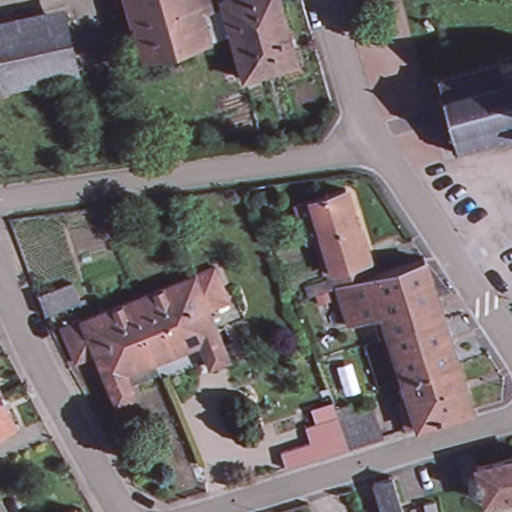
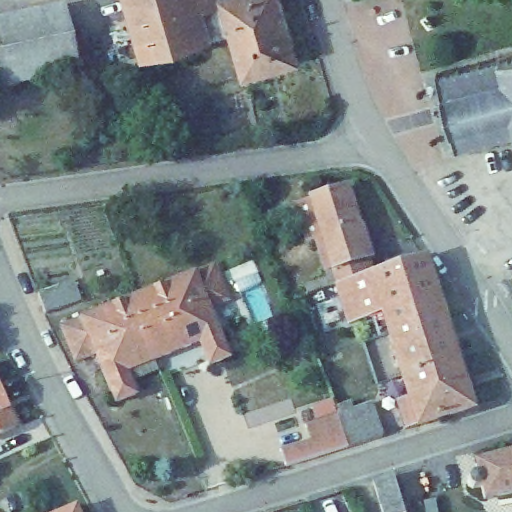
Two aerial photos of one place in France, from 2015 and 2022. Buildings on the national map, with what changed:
unchanged [(141,59),(125,0),(201,0),(219,0),(229,35),(141,59)]
unchanged [(282,0),(299,60),(242,77),(229,35),(219,0),(282,0)]
unchanged [(82,73),(3,92),(0,80),(0,15),(63,1),(82,73)]
unchanged [(508,139),(504,139),(503,135),(486,140),(487,144),(484,145),(483,141),(464,147),(465,151),(463,152),(461,147),(458,149),(457,145),(460,144),(456,129),(453,130),(452,127),(456,127),(448,98),(444,99),(443,95),(447,94),(442,78),(439,79),(438,76),(441,75),(441,74),(443,72),(444,76),(461,71),(460,68),(463,67),(464,70),(483,65),(482,62),(485,61),(486,64),(501,59),(500,56),(512,52),(512,132),(507,134),(508,139)]
unchanged [(390,332),(384,313),(349,323),(336,282),(331,266),(321,234),(306,239),(294,201),(310,196),(341,187),(354,229),(357,227),(366,256),(362,257),(368,272),(428,254),(442,303),(446,315),(459,358),(403,376),(390,332)]
unchanged [(123,294),(211,259),(225,292),(206,301),(226,352),(206,360),(196,335),(148,354),(123,294)]
unchanged [(78,282),(84,302),(51,315),(43,293),(78,282)]
unchanged [(123,365),(133,389),(113,397),(92,348),(73,356),(58,321),(123,294),(148,354),(123,365)]
unchanged [(399,400),(409,397),(403,376),(459,358),(473,407),(418,425),(407,428),(399,400)]
unchanged [(5,395),(0,397),(0,383),(5,395)]
unchanged [(5,395),(19,427),(0,435),(0,397),(5,395)]
unchanged [(306,423),(338,413),(353,408),(371,402),(381,436),(366,441),(349,446),(317,456),(311,439),(306,423)]
unchanged [(483,475),(474,477),(468,476),(467,471),(471,466),(479,463),(477,453),(512,444),(512,482),(486,487),(483,475)]
unchanged [(369,480),(393,472),(401,512),(379,512),(369,480)]
unchanged [(79,507),(81,512),(66,512),(79,507)]

